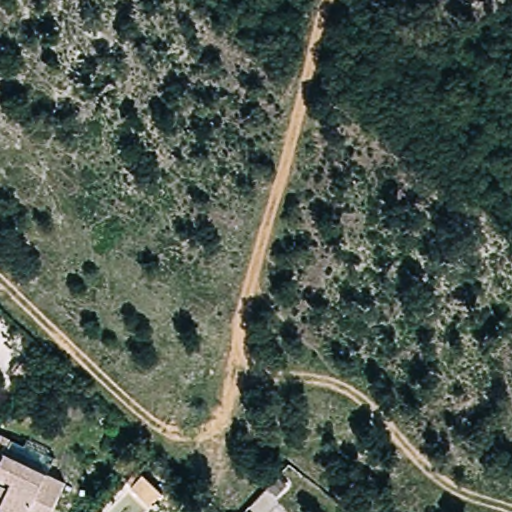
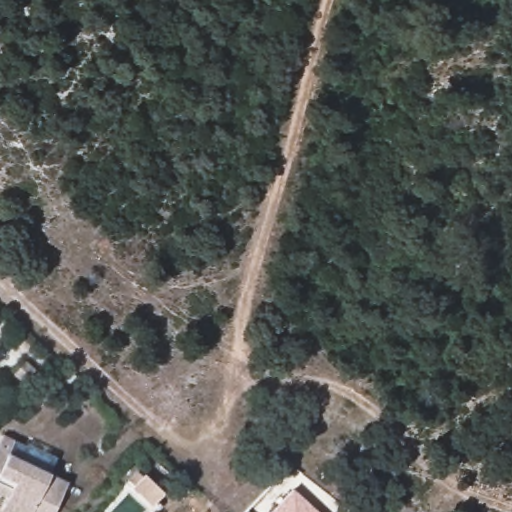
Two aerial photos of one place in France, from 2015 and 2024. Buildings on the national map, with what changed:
unchanged [(6,497),(0,495),(0,436),(14,443),(15,440),(53,458),(45,474),(65,483),(52,512),(0,512),(0,511),(1,509),(6,497)]
unchanged [(138,471),(143,475),(145,474),(163,491),(150,505),(127,483),(138,471)]
new [(271,512),(293,488),(317,512),(271,512)]

